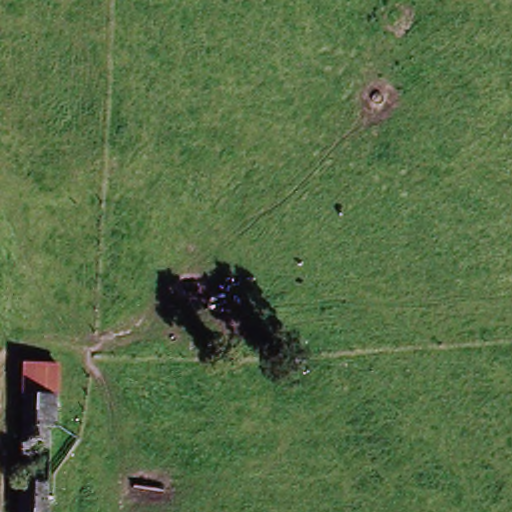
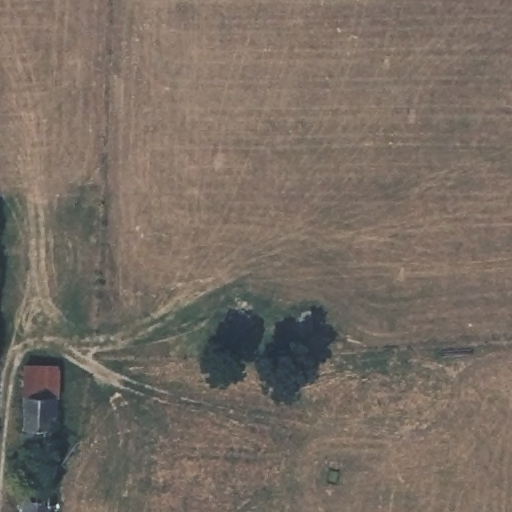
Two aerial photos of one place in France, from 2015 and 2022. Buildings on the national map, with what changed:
unchanged [(20,366),(55,367),(56,417),(47,417),(46,501),(46,512),(18,512),(18,500),(18,496),(20,366)]

